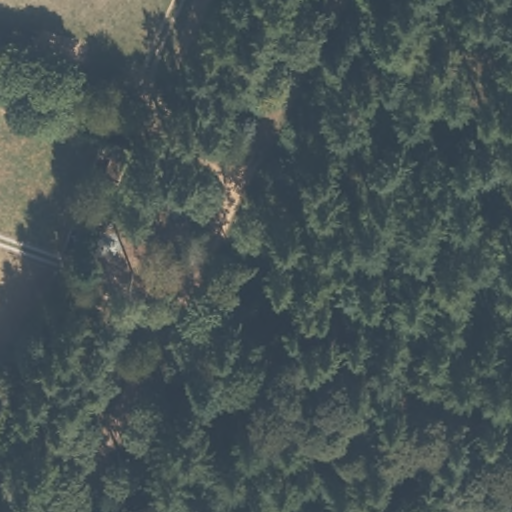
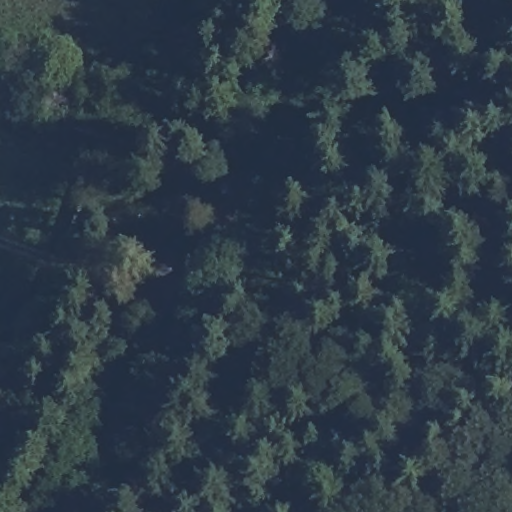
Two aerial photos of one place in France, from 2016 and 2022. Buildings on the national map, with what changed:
unchanged [(116,180),(90,169),(102,139),(130,149),(116,180)]

